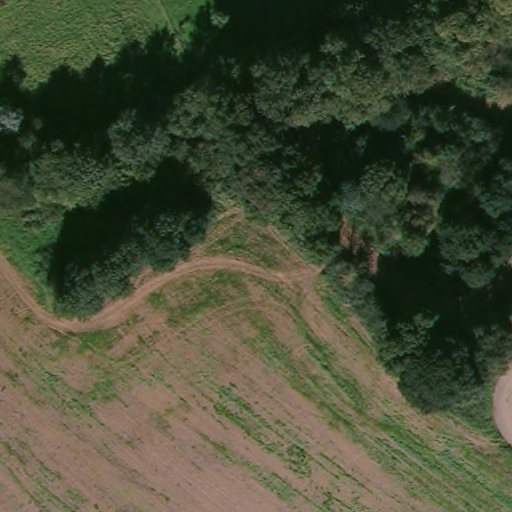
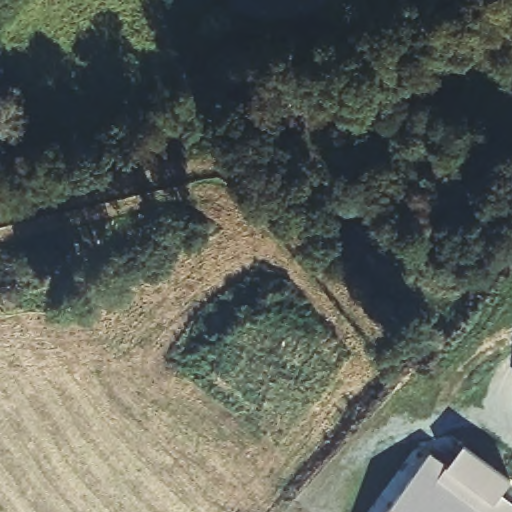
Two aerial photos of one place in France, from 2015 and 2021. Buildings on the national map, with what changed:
new [(448,469),(463,449),(511,485),(500,500),(512,509),(512,512),(388,512),(431,456),(448,469)]

